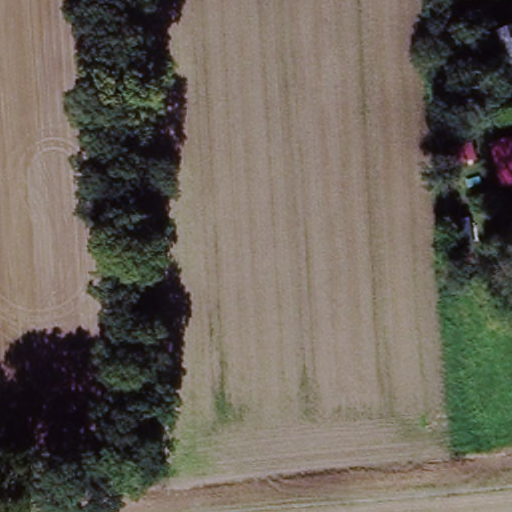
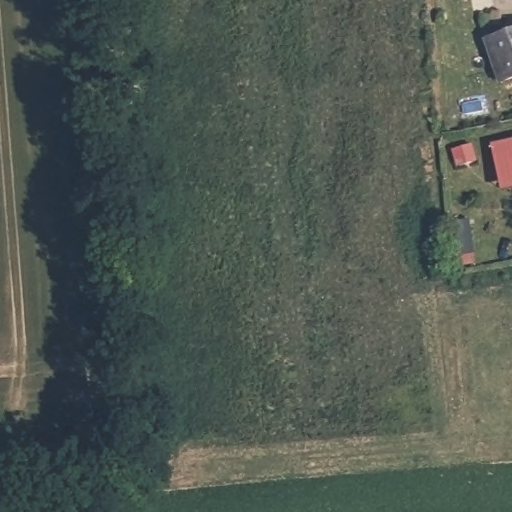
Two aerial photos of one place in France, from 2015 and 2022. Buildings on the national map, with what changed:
unchanged [(493,69),(488,30),(512,28),(512,67),(493,69)]

